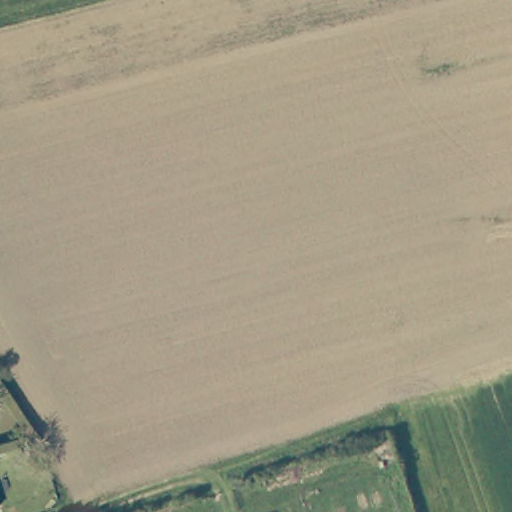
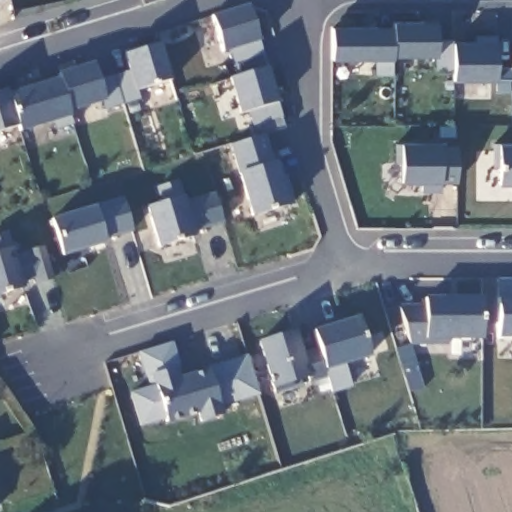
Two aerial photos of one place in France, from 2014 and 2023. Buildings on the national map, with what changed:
new [(249,6),(259,43),(265,56),(235,65),(229,51),(220,54),(211,17),(249,6)]
new [(439,56),(394,57),(394,60),(331,60),(332,28),(394,26),(394,24),(438,22),(439,56)]
new [(497,81),(453,82),(454,70),(441,71),(441,40),(454,39),(453,44),(473,42),(474,36),(498,36),(498,71),(512,70),(512,80),(497,81)]
new [(135,92),(139,99),(124,104),(114,75),(125,70),(121,55),(158,42),(171,81),(135,92)]
new [(106,110),(101,104),(72,113),(59,79),(59,75),(94,64),(99,79),(110,77),(120,105),(106,110)]
new [(254,127),(248,112),(239,115),(229,79),(268,68),(278,105),(282,117),(254,127)]
new [(72,113),(74,119),(20,132),(19,129),(9,94),(59,79),(72,113)]
new [(0,93),(10,90),(9,94),(19,129),(0,134),(0,93)]
new [(239,173),(231,145),(265,135),(274,161),(288,205),(253,216),(239,173)]
new [(497,185),(497,166),(494,167),(493,144),(499,144),(512,144),(512,185),(497,185)]
new [(457,181),(441,182),(439,191),(422,192),(420,182),(399,182),(400,145),(441,145),(442,148),(458,147),(457,181)]
new [(224,226),(197,235),(155,249),(144,210),(159,204),(156,187),(183,178),(190,197),(213,190),(224,226)]
new [(134,231),(106,243),(63,256),(50,220),(94,205),(122,197),(134,231)]
new [(0,295),(0,232),(7,230),(13,247),(14,252),(43,243),(53,280),(23,288),(0,295)]
new [(497,338),(497,297),(497,277),(512,277),(512,339),(497,338)]
new [(423,306),(424,297),(484,298),(484,340),(451,341),(449,346),(407,346),(399,305),(423,306)]
new [(370,356),(342,365),(351,386),(331,393),(326,378),(310,382),(308,377),(272,389),(258,341),(294,331),(305,367),(322,362),(313,330),(359,317),(370,356)]
new [(259,393),(220,405),(223,414),(201,420),(198,413),(168,422),(166,418),(141,425),(129,391),(147,386),(136,352),(173,341),(180,366),(174,368),(177,376),(208,368),(245,355),(259,393)]

